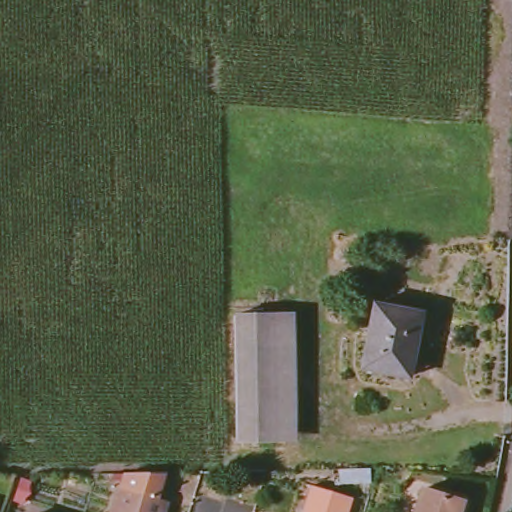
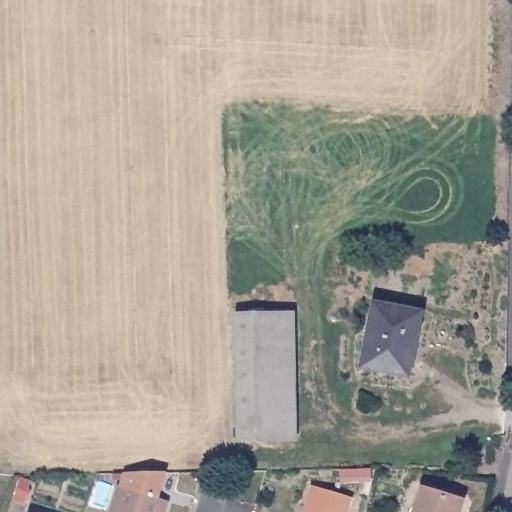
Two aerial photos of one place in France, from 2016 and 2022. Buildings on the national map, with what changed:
unchanged [(363,369),(374,308),(422,316),(410,378),(363,369)]
unchanged [(244,318),(285,318),(287,443),(246,443),(244,318)]
unchanged [(118,496),(122,480),(161,479),(154,507),(162,509),(162,512),(110,512),(115,495),(118,496)]
unchanged [(458,499),(454,512),(410,512),(418,487),(458,499)]
unchanged [(352,501),(349,512),(307,512),(314,489),(352,501)]

